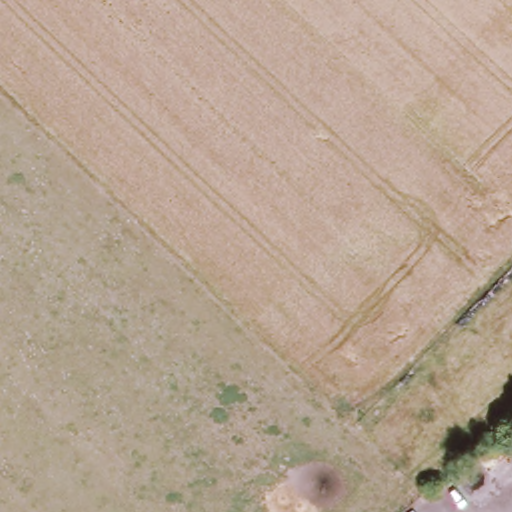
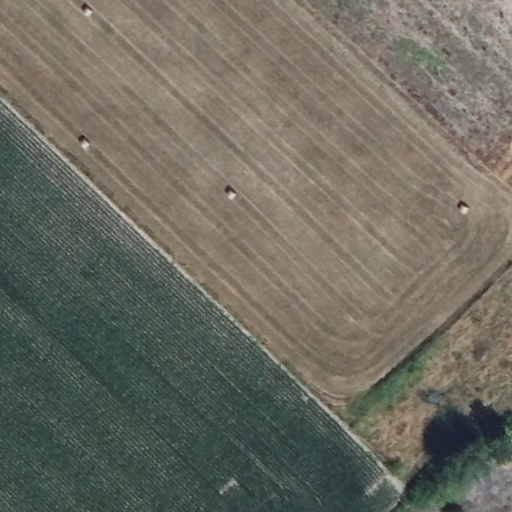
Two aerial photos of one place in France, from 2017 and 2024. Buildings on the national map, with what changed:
unchanged [(512,433),(512,438),(510,435),(512,433)]

